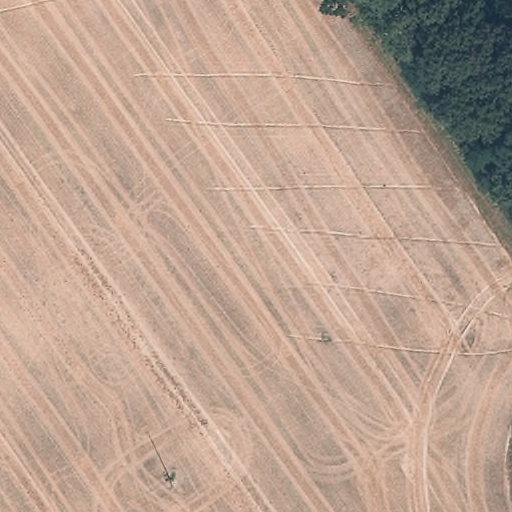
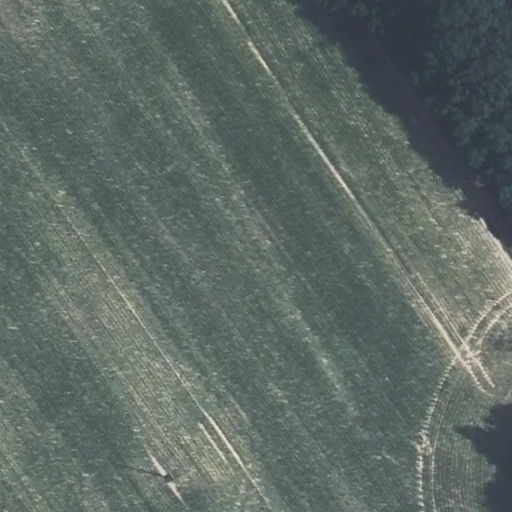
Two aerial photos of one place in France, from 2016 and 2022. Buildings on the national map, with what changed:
[]

